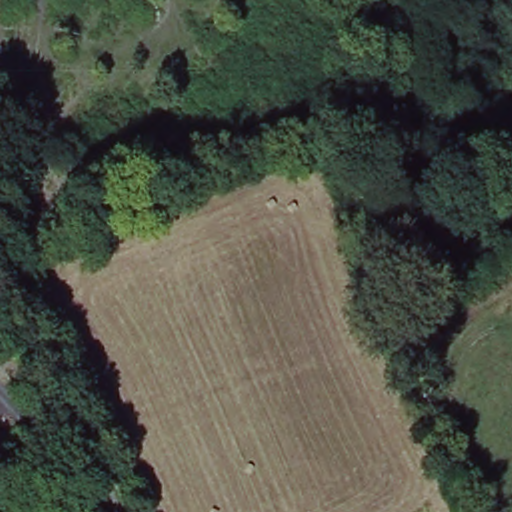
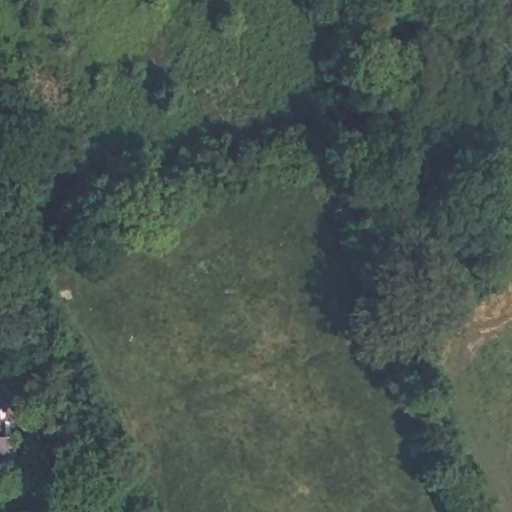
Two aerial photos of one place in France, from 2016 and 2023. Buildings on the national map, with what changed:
unchanged [(14,432),(14,461),(0,462),(0,433),(14,432)]

